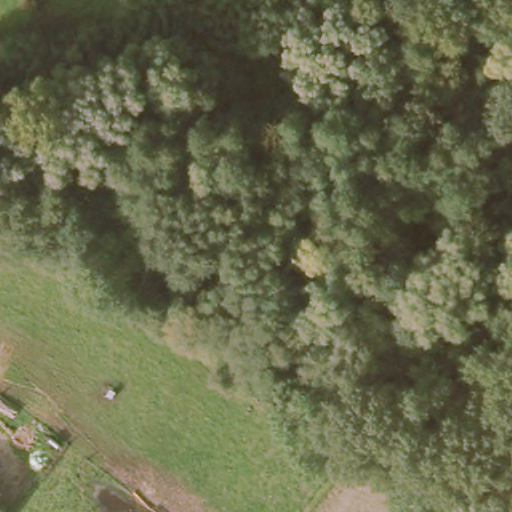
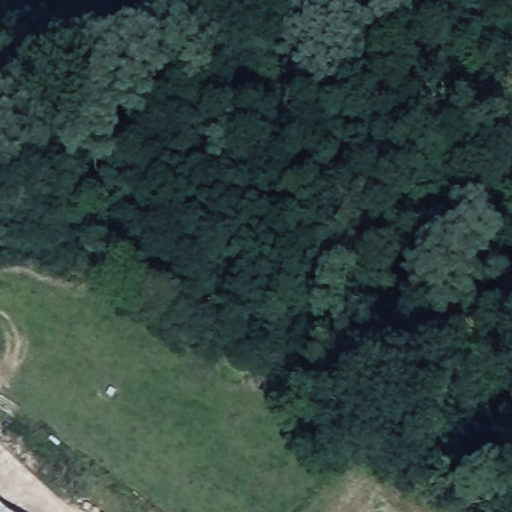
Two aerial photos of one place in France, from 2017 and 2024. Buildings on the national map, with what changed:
unchanged [(0,509),(4,512),(0,512),(0,509)]

